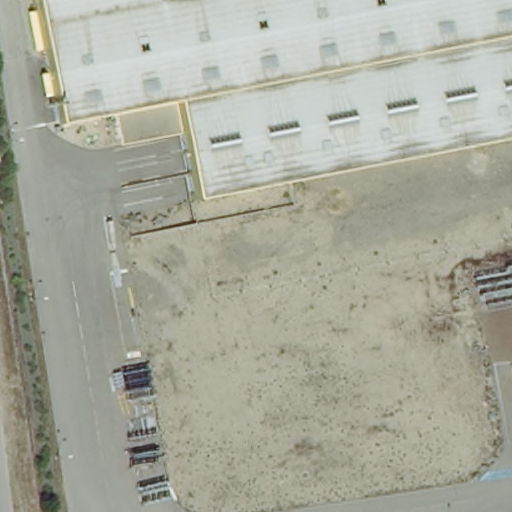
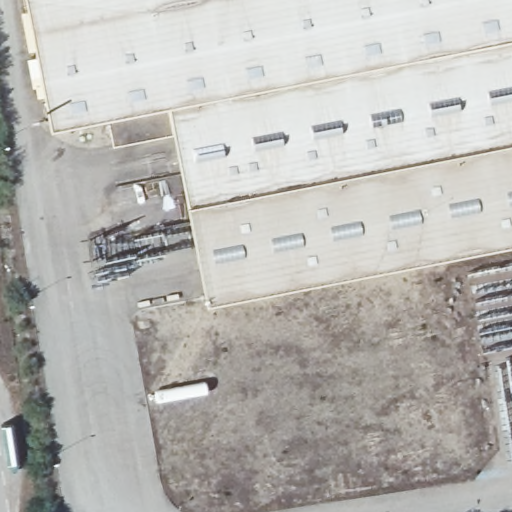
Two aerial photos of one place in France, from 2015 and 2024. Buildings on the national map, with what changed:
unchanged [(52,124),(28,0),(512,0),(512,32),(163,102),(52,124)]
unchanged [(179,195),(163,102),(512,32),(512,133),(179,195)]
new [(196,290),(179,195),(512,133),(512,232),(196,290)]

